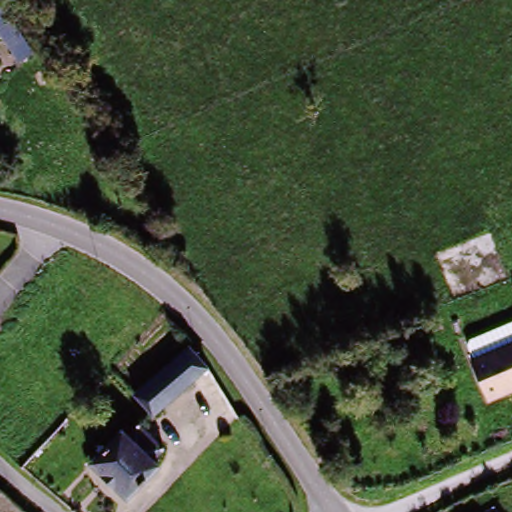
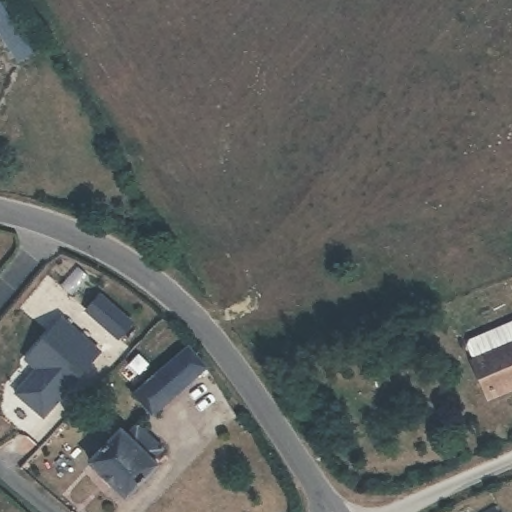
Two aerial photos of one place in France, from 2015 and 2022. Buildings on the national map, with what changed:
unchanged [(0,43),(0,0),(2,0),(34,54),(15,66),(0,43)]
new [(135,320),(120,340),(84,311),(98,292),(135,320)]
new [(102,352),(44,418),(14,392),(35,368),(24,358),(62,315),(102,352)]
unchanged [(476,358),(512,344),(512,392),(495,400),(476,358)]
unchanged [(129,392),(187,347),(205,371),(145,415),(129,392)]
unchanged [(140,475),(116,496),(82,458),(110,434),(115,434),(127,426),(152,455),(145,461),(146,466),(140,471),(140,475)]
unchanged [(501,512),(486,512),(498,505),(501,512)]

